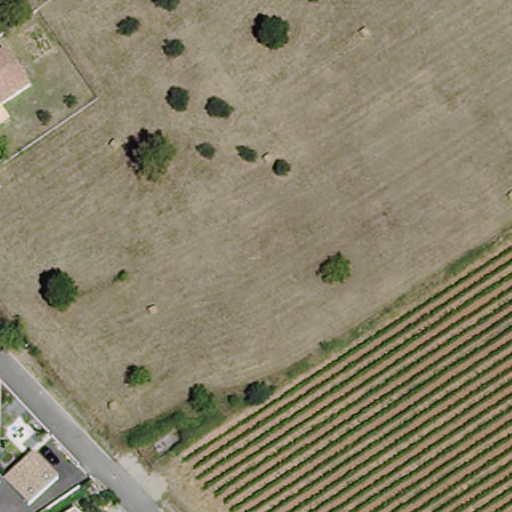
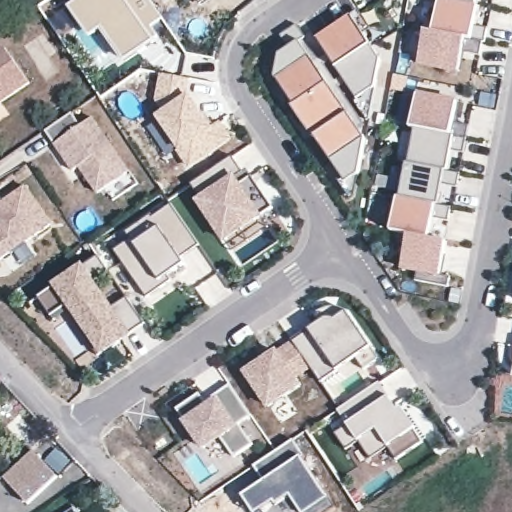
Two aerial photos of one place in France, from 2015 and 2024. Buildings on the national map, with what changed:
new [(116,64),(76,7),(85,0),(149,0),(162,19),(151,27),(158,37),(142,49),(141,47),(128,55),(116,64)]
new [(203,7),(199,0),(213,0),(203,7)]
new [(476,5),(478,6),(474,27),(487,30),(485,42),(482,42),(480,55),(463,52),(459,72),(422,65),(428,32),(437,33),(443,0),(476,0),(476,5)]
new [(359,10),(373,29),(363,35),(371,47),(381,60),(376,87),(369,121),(354,101),(357,98),(338,69),(318,39),(351,14),(359,10)]
new [(343,177),(332,162),(317,139),(316,140),(276,79),(281,56),(291,49),(281,36),(298,25),(306,37),(301,42),(349,116),(351,114),(367,140),(360,174),(355,199),(352,201),(338,181),(343,177)]
unchanged [(32,80),(0,105),(0,44),(2,42),(32,80)]
new [(158,121),(155,115),(160,112),(154,100),(159,72),(191,78),(188,91),(190,93),(214,125),(221,121),(234,139),(189,170),(175,148),(166,154),(148,127),(158,121)]
new [(422,271),(407,268),(414,236),(396,232),(403,198),(404,198),(411,164),(412,164),(419,130),(416,130),(420,102),(459,110),(456,127),(470,130),(466,154),(453,152),(450,171),(462,174),(459,191),(444,188),(441,205),(452,207),(450,220),(435,217),(431,239),(448,242),(442,274),(452,276),(450,286),(420,280),(422,271)]
unchanged [(70,109),(71,108),(82,124),(88,120),(135,187),(112,204),(105,193),(97,199),(77,170),(71,174),(40,130),(70,109)]
new [(232,156),(243,172),(247,169),(274,209),(263,217),(270,227),(233,252),(225,244),(196,202),(201,199),(192,185),(232,156)]
new [(8,255),(0,245),(0,233),(5,230),(0,223),(0,190),(7,185),(17,200),(38,185),(61,217),(8,255)]
new [(188,260),(192,266),(182,273),(190,286),(162,306),(127,256),(144,245),(139,239),(164,222),(166,225),(183,213),(206,247),(188,260)]
new [(150,328),(105,360),(75,317),(58,328),(41,303),(103,261),(150,328)]
new [(249,371),(278,351),(278,352),(293,342),(293,341),(320,322),(318,320),(334,308),(346,308),(372,346),(356,357),(348,345),(329,357),(335,366),(318,377),(308,362),(290,373),(295,382),(269,400),(249,371)]
new [(226,377),(247,407),(235,416),(249,437),(230,449),(218,431),(201,442),(173,401),(193,387),(203,401),(211,396),(207,390),(226,377)]
new [(380,383),(390,398),(394,395),(403,408),(417,428),(425,442),(398,460),(390,446),(372,458),(360,441),(346,450),(336,435),(349,426),(338,411),(380,383)]
new [(255,468),(295,440),(305,455),(302,458),(336,507),(330,512),(303,512),(281,512),(278,507),(270,512),(264,512),(251,492),(265,482),(255,468)]
unchanged [(59,475),(30,506),(4,477),(34,451),(59,475)]
unchanged [(80,512),(68,512),(76,506),(80,512)]

